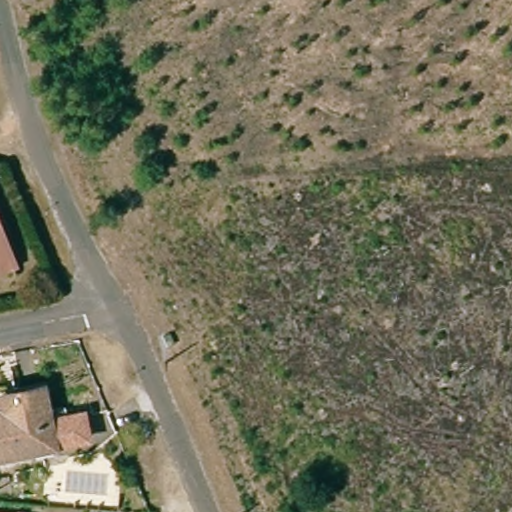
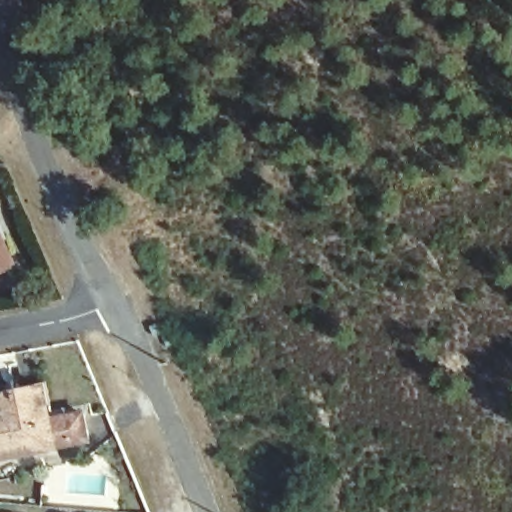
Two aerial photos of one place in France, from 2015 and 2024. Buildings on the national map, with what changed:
unchanged [(1,241),(7,259),(0,262),(0,239),(1,241)]
unchanged [(12,269),(0,274),(0,262),(7,259),(12,269)]
unchanged [(177,341),(171,344),(166,332),(172,329),(177,341)]
unchanged [(72,413),(78,440),(0,456),(0,395),(4,394),(31,388),(37,420),(72,413)]

